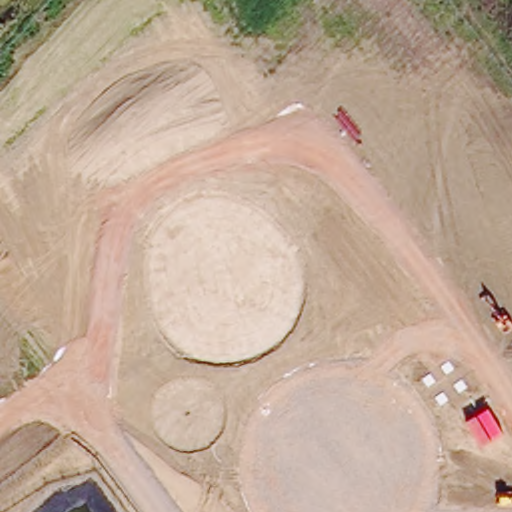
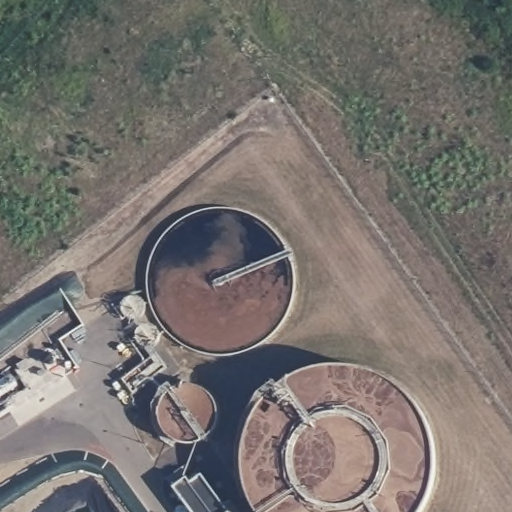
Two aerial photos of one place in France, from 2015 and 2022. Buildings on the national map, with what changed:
new [(189,485),(202,475),(229,512),(190,512),(172,488),(184,478),(189,485)]
new [(233,512),(230,512),(232,510),(233,512)]

